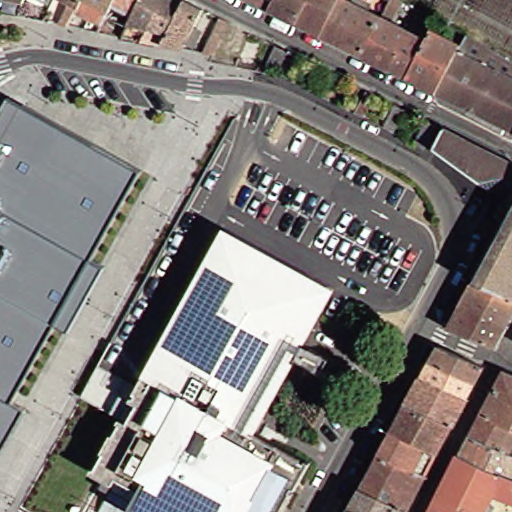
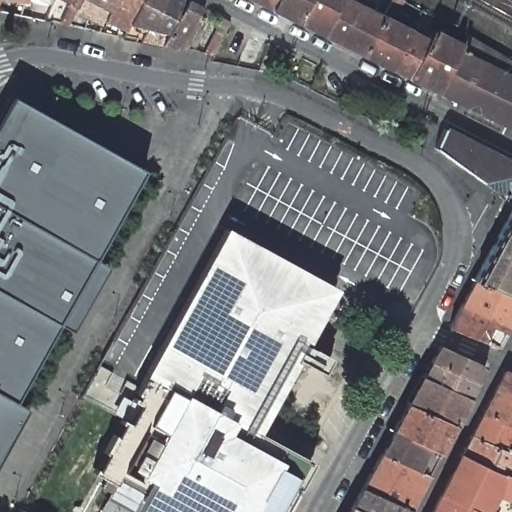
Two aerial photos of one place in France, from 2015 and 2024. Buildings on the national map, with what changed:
unchanged [(61,20),(53,19),(62,0),(71,0),(67,6),(61,20)]
unchanged [(67,6),(71,0),(105,0),(99,12),(95,19),(67,6)]
unchanged [(131,0),(123,15),(120,23),(99,12),(105,0),(131,0)]
unchanged [(149,25),(144,37),(139,36),(144,26),(123,15),(131,0),(187,0),(197,5),(176,44),(156,40),(163,27),(149,25)]
unchanged [(243,0),(269,0),(263,10),(243,0)]
unchanged [(269,0),(303,0),(291,24),(263,10),(269,0)]
unchanged [(291,24),(303,0),(332,0),(314,36),(291,24)]
unchanged [(357,58),(314,36),(332,0),(342,0),(377,19),(357,58)]
unchanged [(377,19),(385,3),(381,0),(393,0),(396,1),(386,23),(402,32),(382,70),(357,58),(377,19)]
unchanged [(411,35),(420,41),(400,79),(382,70),(402,32),(412,10),(420,15),(411,35)]
unchanged [(218,18),(227,23),(211,54),(205,54),(200,53),(218,18)]
unchanged [(115,31),(118,25),(124,28),(121,33),(115,31)]
unchanged [(222,57),(237,28),(250,34),(237,60),(222,57)]
unchanged [(431,95),(400,79),(420,41),(425,32),(455,47),(431,95)]
unchanged [(431,95),(455,47),(460,37),(482,50),(454,108),(431,95)]
unchanged [(265,65),(276,47),(287,53),(277,69),(265,65)]
unchanged [(454,108),(482,50),(510,65),(482,121),(454,108)]
unchanged [(509,135),(482,121),(510,65),(512,67),(512,129),(509,135)]
unchanged [(305,80),(307,75),(312,77),(310,82),(305,80)]
unchanged [(381,130),(353,114),(357,108),(365,93),(392,106),(402,111),(394,128),(390,135),(381,130)]
unchanged [(144,171),(95,260),(107,267),(71,332),(57,325),(14,403),(27,409),(0,457),(0,118),(12,98),(144,171)]
unchanged [(408,148),(412,139),(420,123),(429,128),(422,144),(417,153),(408,148)]
unchanged [(509,135),(512,129),(512,136),(509,135)]
unchanged [(510,192),(494,199),(487,194),(482,189),(478,187),(475,185),(456,171),(427,150),(427,149),(437,131),(502,164),(502,165),(512,170),(512,193),(510,192)]
unchanged [(467,283),(494,234),(508,208),(512,201),(512,302),(467,283)]
unchanged [(316,312),(296,346),(321,361),(313,375),(287,360),(247,431),(301,464),(274,512),(162,512),(84,468),(209,250),(221,229),(327,292),(316,312)]
unchanged [(510,309),(499,328),(454,308),(467,283),(512,302),(512,305),(510,309)]
unchanged [(488,349),(442,329),(454,308),(499,328),(488,349)]
unchanged [(400,401),(415,374),(422,360),(431,344),(477,362),(467,379),(460,394),(445,422),(400,401)]
unchanged [(486,470),(458,456),(468,437),(478,417),(502,374),(512,378),(512,441),(507,454),(512,457),(512,480),(486,470)]
unchanged [(431,450),(385,428),(400,401),(445,422),(431,450)]
unchanged [(418,473),(372,450),(385,428),(431,450),(418,473)]
unchanged [(401,508),(353,486),(372,450),(418,473),(401,508)]
unchanged [(490,496),(482,512),(430,512),(458,456),(486,470),(512,480),(512,504),(490,496)]
unchanged [(399,512),(358,512),(342,505),(353,486),(401,508),(399,512)]
unchanged [(342,505),(358,512),(338,512),(342,505)]

